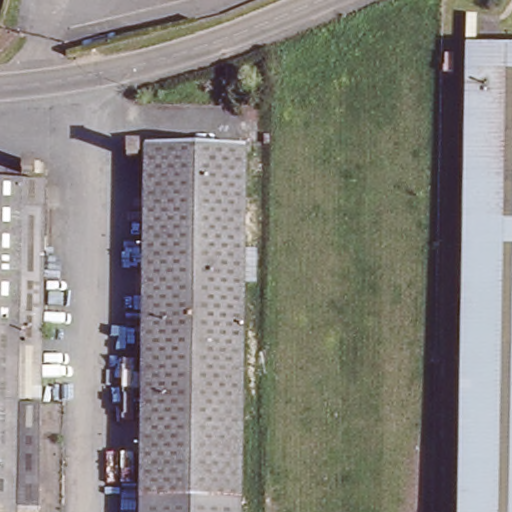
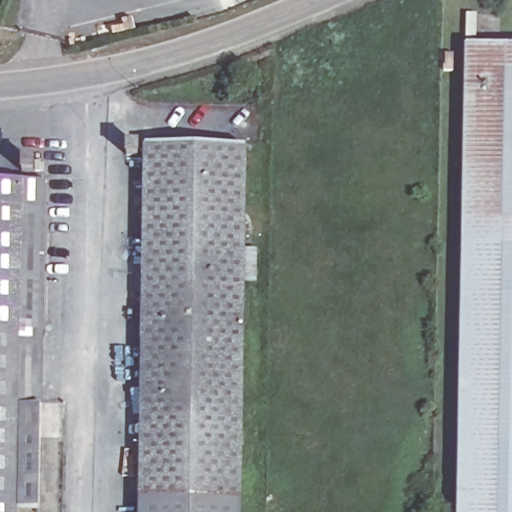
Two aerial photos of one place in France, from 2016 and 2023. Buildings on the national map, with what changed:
unchanged [(468,41),(469,9),(481,10),(481,41),(512,42),(512,512),(459,512),(468,41)]
unchanged [(459,48),(459,67),(451,67),(451,48),(459,48)]
unchanged [(140,142),(140,156),(129,156),(129,142),(140,142)]
unchanged [(246,145),(239,488),(239,512),(142,512),(148,142),(246,145)]
unchanged [(35,159),(35,172),(22,172),(22,159),(35,159)]
unchanged [(42,503),(18,502),(18,512),(0,512),(0,174),(48,175),(42,503)]

